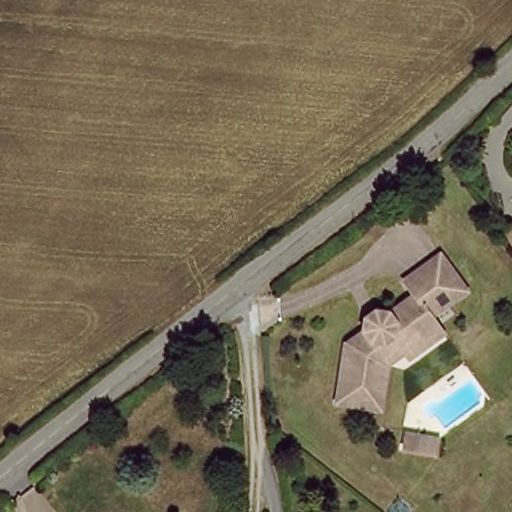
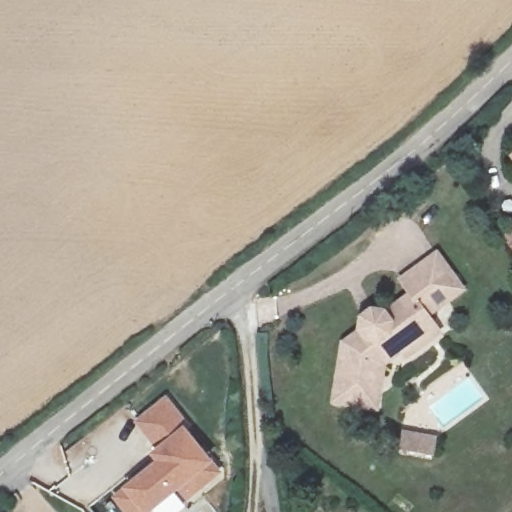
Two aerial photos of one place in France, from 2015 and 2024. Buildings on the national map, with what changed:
unchanged [(512,156),(512,161),(510,158),(512,156)]
unchanged [(512,262),(497,243),(512,231),(512,262)]
unchanged [(409,357),(405,351),(387,365),(380,409),(336,402),(343,360),(369,340),(371,327),(381,319),(394,321),(419,302),(409,288),(445,261),(472,298),(437,324),(442,332),(409,357)]
new [(157,461),(152,455),(158,449),(137,424),(168,398),(190,427),(217,462),(225,472),(189,501),(180,490),(153,512),(125,512),(113,499),(124,489),(157,461)]

